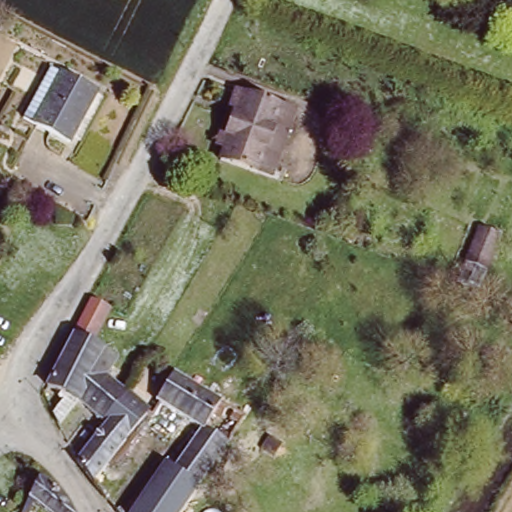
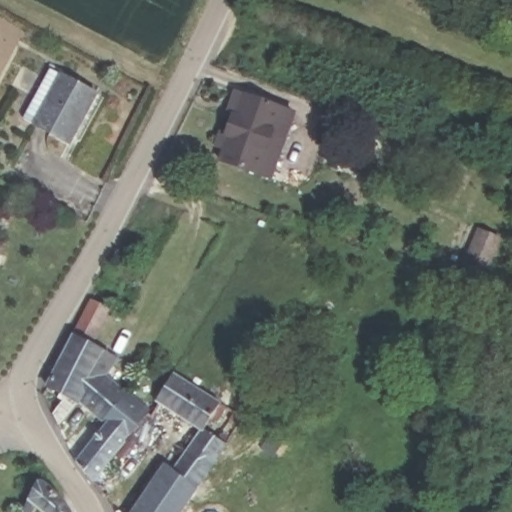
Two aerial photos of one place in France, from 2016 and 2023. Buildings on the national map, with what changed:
unchanged [(28,116),(53,67),(100,92),(83,124),(74,140),(68,137),(28,116)]
unchanged [(296,111),(269,181),(208,156),(231,90),(296,111)]
unchanged [(459,282),(482,227),(502,237),(482,290),(459,282)]
unchanged [(47,380),(74,326),(91,294),(112,310),(95,338),(103,342),(123,352),(108,377),(129,389),(110,417),(75,397),(47,380)]
unchanged [(208,435),(203,432),(158,406),(177,381),(225,410),(208,435)]
unchanged [(115,500),(101,480),(85,455),(110,417),(129,389),(158,406),(119,456),(137,469),(115,500)]
unchanged [(133,512),(168,458),(181,466),(203,432),(208,435),(228,446),(181,512),(133,512)]
unchanged [(42,482),(78,512),(41,512),(27,500),(42,482)]

